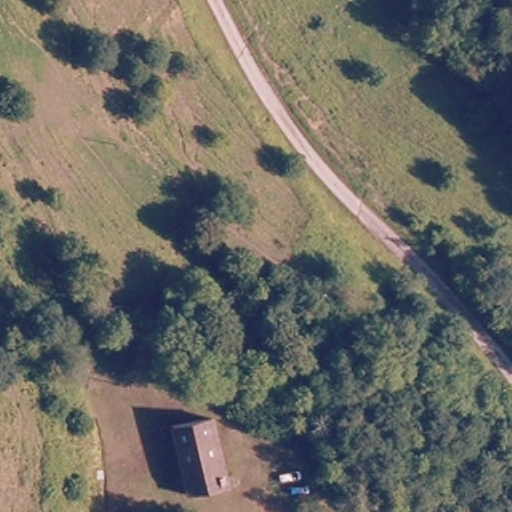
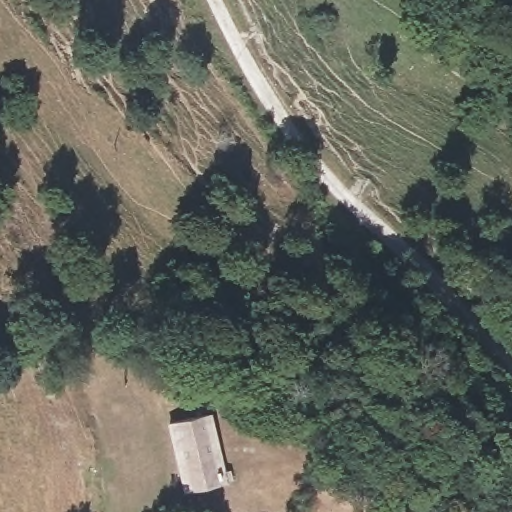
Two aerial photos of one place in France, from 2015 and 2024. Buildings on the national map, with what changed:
unchanged [(173,420),(217,407),(234,475),(190,487),(173,420)]

